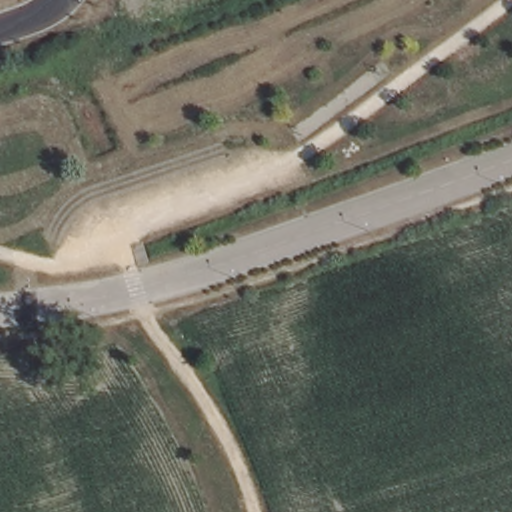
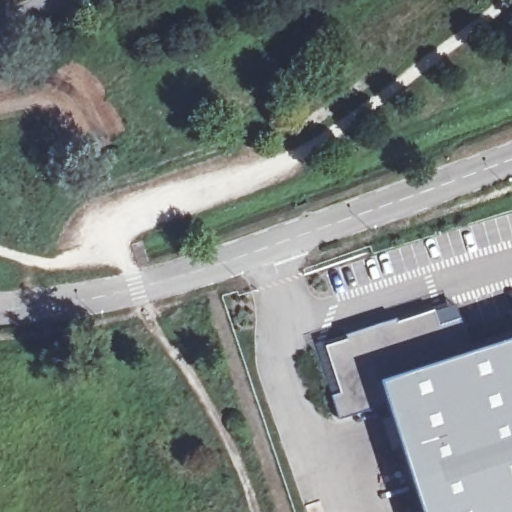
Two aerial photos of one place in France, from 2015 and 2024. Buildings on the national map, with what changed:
new [(469,350),(512,336),(512,512),(419,512),(384,403),(337,417),(331,395),(339,393),(324,346),(346,339),(345,334),(394,319),(395,322),(433,309),(437,324),(459,317),(469,350)]

